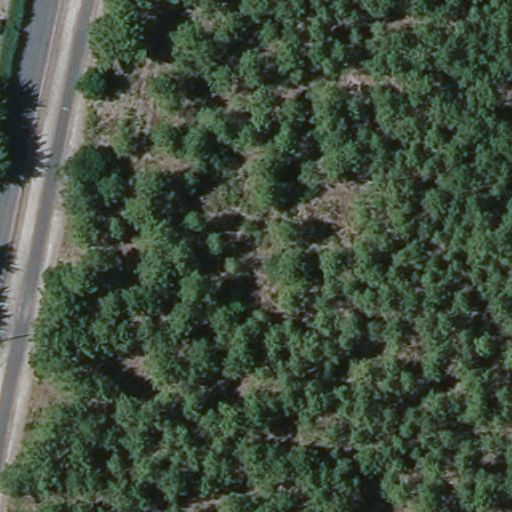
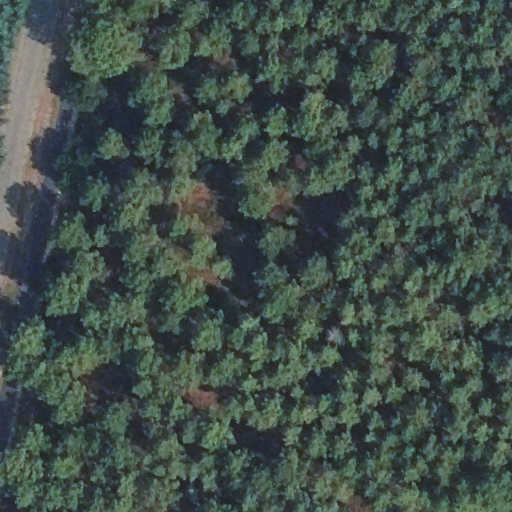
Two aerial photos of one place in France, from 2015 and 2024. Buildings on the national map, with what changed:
[]

